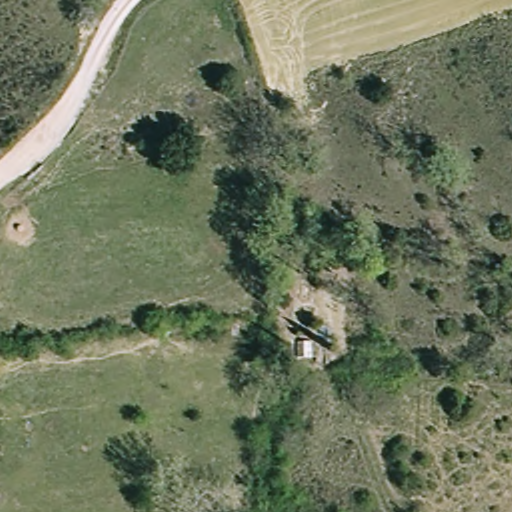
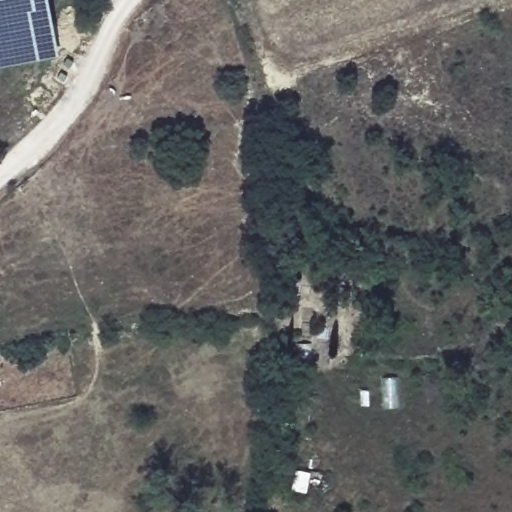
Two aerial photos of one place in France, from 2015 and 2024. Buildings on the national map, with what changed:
new [(0,66),(0,0),(49,0),(59,55),(0,66)]
unchanged [(297,340),(316,341),(315,360),(297,360),(297,340)]

